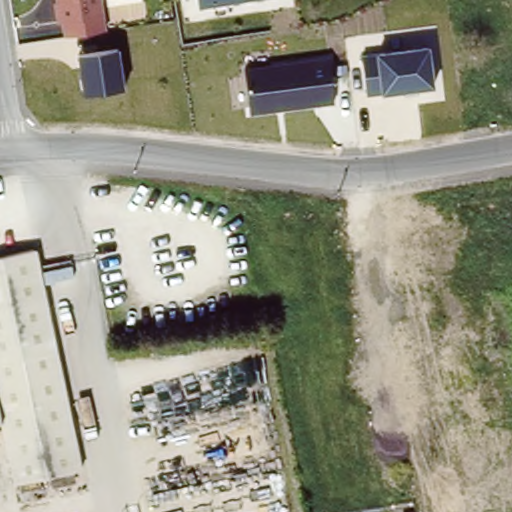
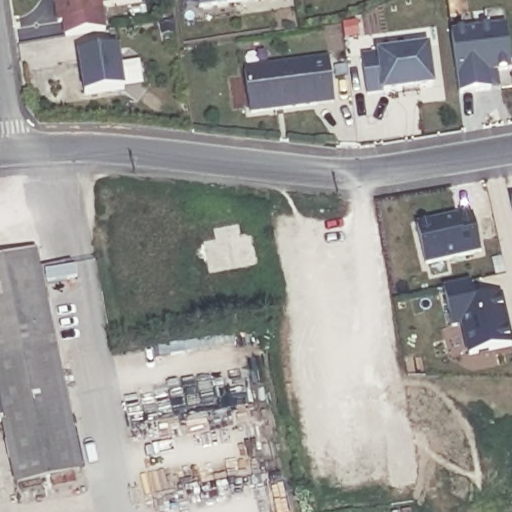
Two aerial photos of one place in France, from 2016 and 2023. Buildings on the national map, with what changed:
unchanged [(60,40),(56,0),(103,0),(107,32),(60,40)]
unchanged [(196,0),(254,0),(197,7),(196,0)]
new [(509,70),(495,72),(497,89),(492,89),(460,93),(452,31),(505,24),(509,70)]
unchanged [(435,88),(381,96),(380,92),(367,96),(363,54),(430,45),(435,88)]
unchanged [(125,91),(83,96),(77,54),(120,48),(125,91)]
unchanged [(334,104),(247,112),(242,68),(327,57),(334,104)]
demolished [(450,250),(445,211),(512,202),(512,242),(450,250)]
new [(511,203),(512,203),(512,208),(511,203)]
new [(425,264),(417,224),(459,214),(459,217),(472,214),(480,253),(425,264)]
unchanged [(15,489),(2,428),(0,415),(0,260),(36,253),(50,320),(74,434),(82,475),(15,489)]
new [(468,356),(461,326),(452,328),(445,287),(471,282),(475,301),(504,294),(512,338),(512,346),(468,356)]
unchanged [(0,428),(0,415),(2,428),(0,428)]

